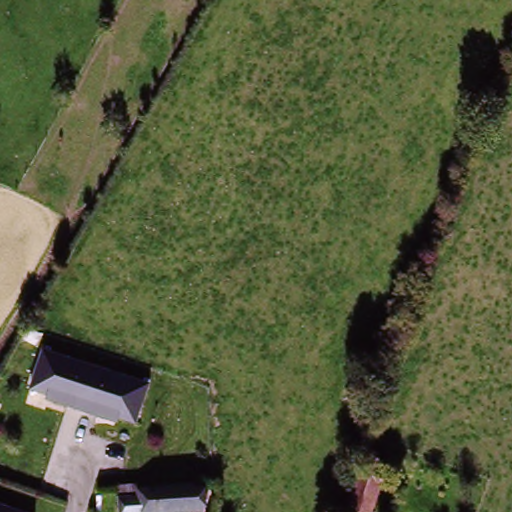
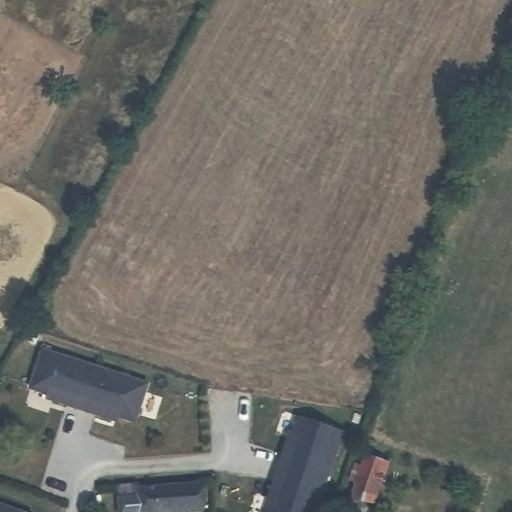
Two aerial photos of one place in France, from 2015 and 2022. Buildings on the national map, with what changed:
unchanged [(79,412),(62,406),(64,400),(29,388),(42,351),(94,369),(79,412)]
unchanged [(145,388),(132,426),(94,412),(92,416),(79,412),(94,369),(145,388)]
demolished [(362,382),(354,408),(337,402),(346,376),(362,382)]
new [(347,433),(319,512),(267,512),(270,505),(265,502),(290,432),(292,433),(299,417),(347,433)]
unchanged [(390,463),(373,512),(347,512),(367,455),(390,463)]
unchanged [(194,512),(117,512),(117,483),(147,482),(147,486),(192,484),(193,490),(194,500),(194,512)]
unchanged [(8,512),(0,512),(0,509),(8,512)]

